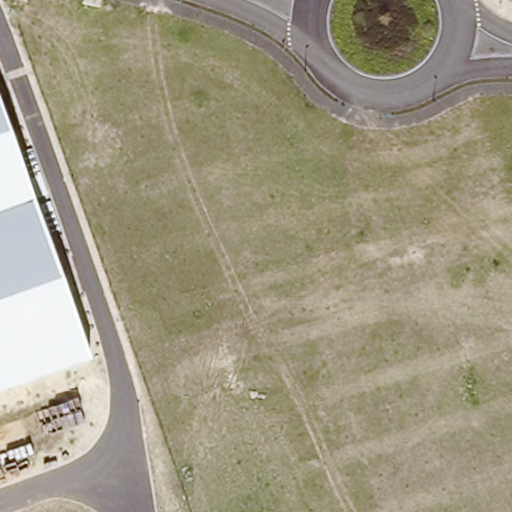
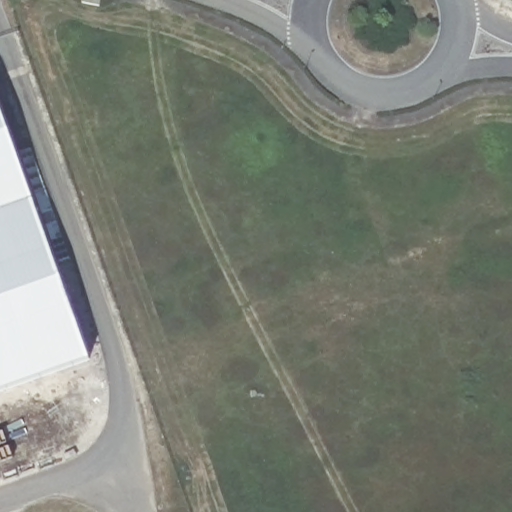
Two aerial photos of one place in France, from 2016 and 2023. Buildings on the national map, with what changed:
unchanged [(0,391),(0,106),(87,360),(0,391)]

